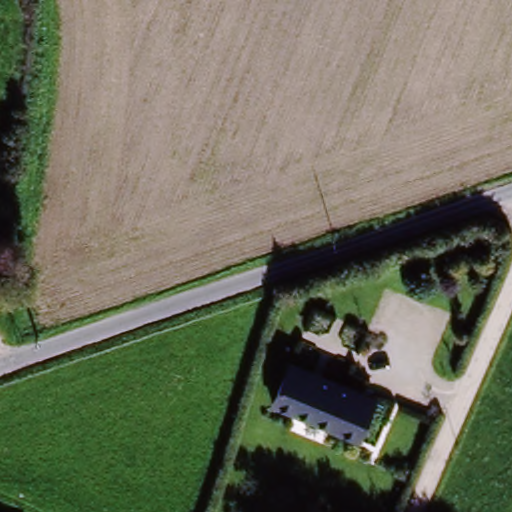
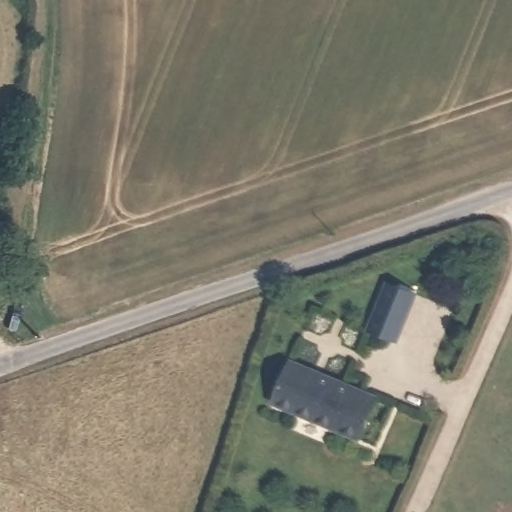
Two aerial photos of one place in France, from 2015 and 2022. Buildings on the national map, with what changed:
new [(388,290),(416,302),(396,348),(369,336),(388,290)]
unchanged [(355,441),(269,402),(289,363),(374,402),(355,441)]

